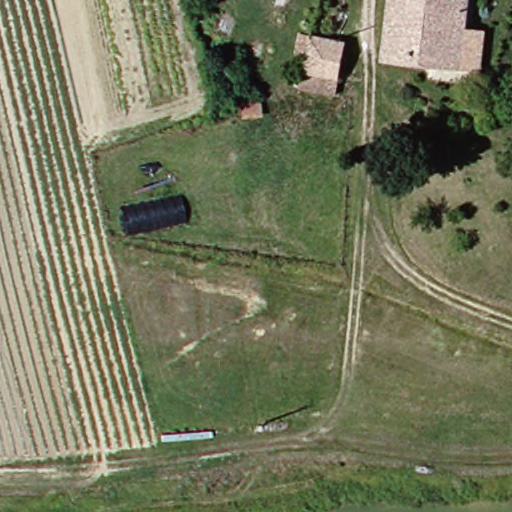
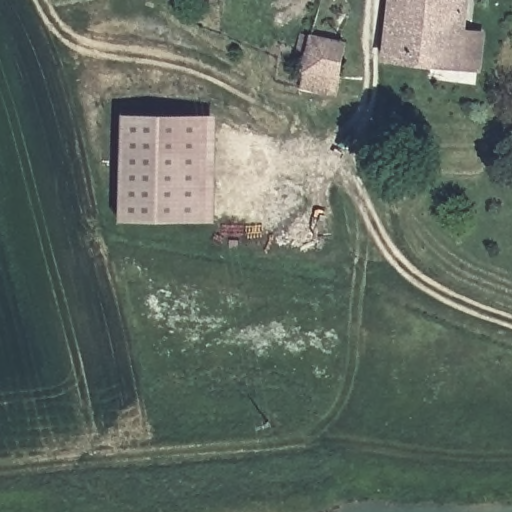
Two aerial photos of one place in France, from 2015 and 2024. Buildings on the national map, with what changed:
unchanged [(399,0),(485,0),(474,69),(390,55),(399,0)]
unchanged [(315,88),(320,34),(352,40),(350,90),(315,88)]
new [(217,223),(120,220),(121,114),(217,115),(217,223)]

